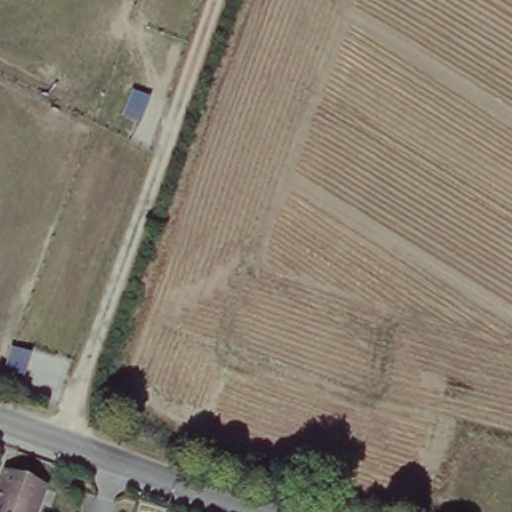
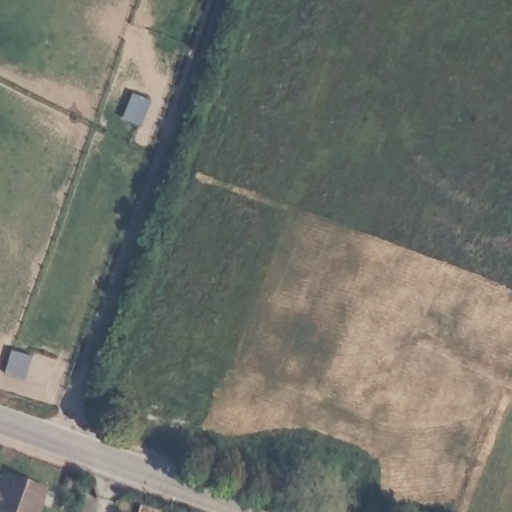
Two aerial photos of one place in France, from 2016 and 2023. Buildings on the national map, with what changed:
unchanged [(132,91),(150,98),(137,126),(122,119),(132,91)]
unchanged [(10,349),(30,355),(24,377),(3,371),(10,349)]
unchanged [(46,491),(38,512),(0,512),(0,475),(1,474),(46,491)]

